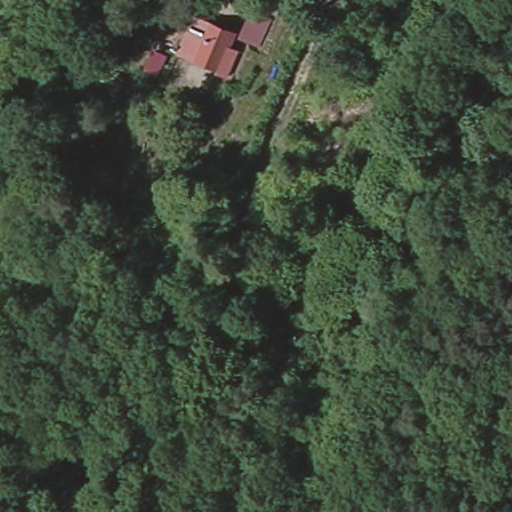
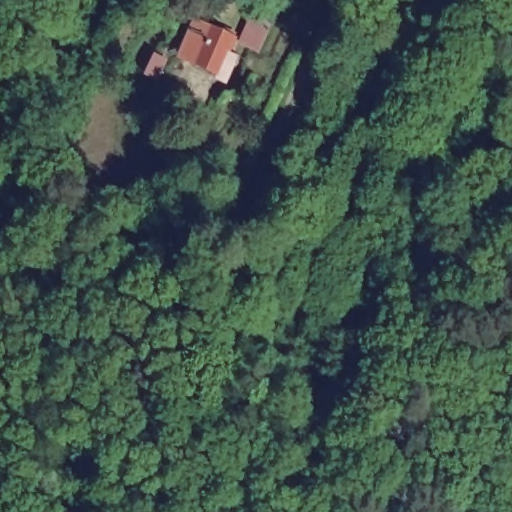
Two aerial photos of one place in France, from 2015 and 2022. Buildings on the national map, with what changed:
unchanged [(225,36),(211,73),(184,62),(198,26),(225,36)]

